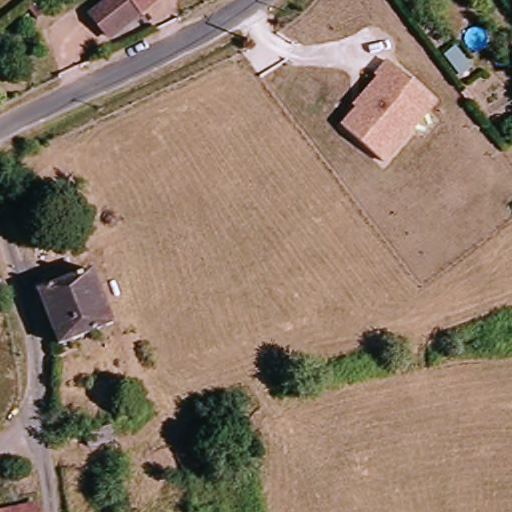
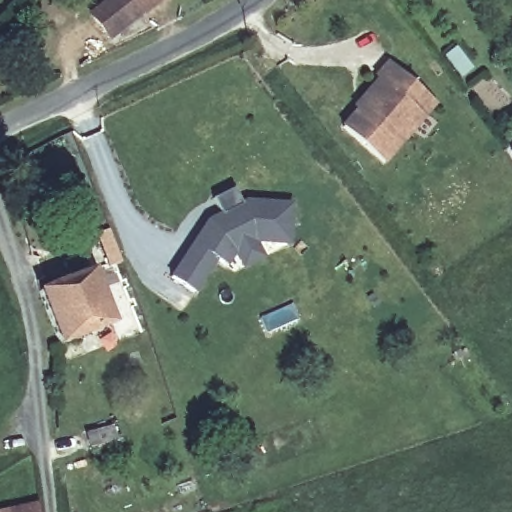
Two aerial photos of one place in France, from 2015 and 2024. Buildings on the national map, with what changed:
unchanged [(86,21),(113,0),(159,0),(104,42),(86,21)]
unchanged [(472,69),(461,80),(444,60),(455,50),(472,69)]
unchanged [(342,126),(357,108),(355,104),(378,77),(375,75),(387,60),(438,105),(387,164),(342,126)]
new [(243,267),(235,251),(226,266),(216,260),(194,293),(171,278),(209,221),(221,215),(224,220),(213,199),(234,188),(242,205),(247,202),(292,205),(289,243),(255,241),(263,257),(243,267)]
unchanged [(92,270),(115,326),(61,347),(38,292),(92,270)]
unchanged [(31,509),(32,512),(20,512),(31,509)]

